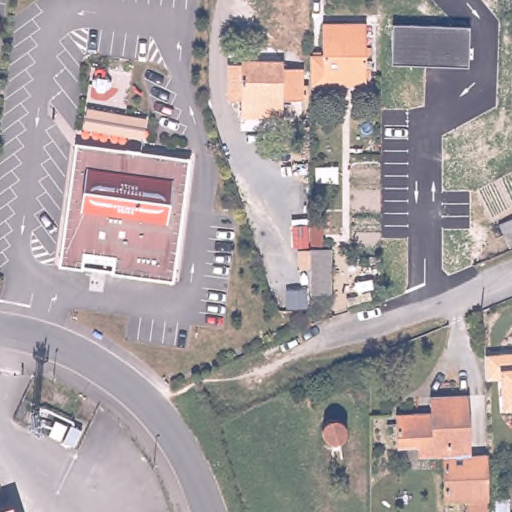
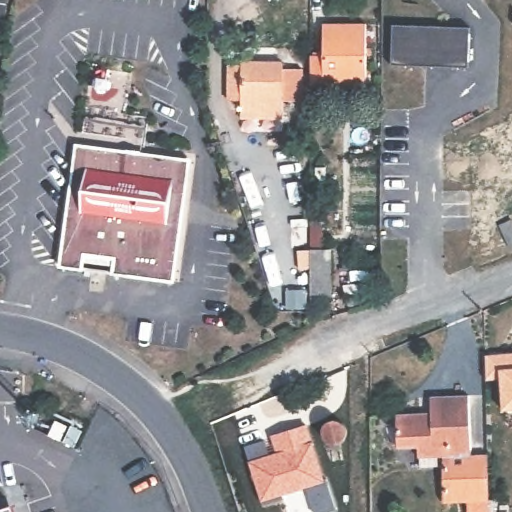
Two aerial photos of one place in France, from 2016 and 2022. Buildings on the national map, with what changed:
unchanged [(366,90),(312,89),(312,63),(312,59),(324,59),(323,27),(366,28),(366,74),(366,90)]
unchanged [(420,69),(396,68),(398,28),(475,31),(473,71),(420,69)]
unchanged [(229,103),(229,65),(283,63),(283,73),(301,73),(300,103),(282,103),(282,119),(240,119),(240,103),(229,103)]
unchanged [(188,156),(173,278),(61,264),(76,143),(188,156)]
unchanged [(311,309),(288,308),(285,288),(311,289),(310,270),(298,270),(297,248),(311,248),(310,216),(325,216),(325,248),(333,248),(331,297),(311,297),(311,309)]
unchanged [(501,224),(512,219),(512,247),(511,248),(501,224)]
unchanged [(473,225),(473,243),(459,243),(460,220),(466,220),(466,225),(473,225)]
unchanged [(500,378),(483,379),(483,353),(499,352),(512,351),(512,407),(502,407),(500,378)]
unchanged [(397,411),(421,411),(421,418),(432,418),(432,392),(468,392),(469,436),(469,449),(484,450),(483,495),(441,495),(440,451),(418,451),(417,444),(411,444),(398,444),(397,416),(397,411)]
unchanged [(322,431),(323,426),(327,422),(332,419),(337,419),(342,421),(345,423),(348,427),(349,432),(349,437),(346,442),(341,446),(338,447),(333,447),(327,444),(323,440),(322,436),(322,431)]
unchanged [(54,424),(65,430),(58,444),(47,439),(54,424)]
new [(335,509),(323,512),(313,512),(307,488),(283,495),(284,498),(263,504),(244,447),(265,440),(269,454),(275,452),(270,435),(309,425),(325,481),(328,481),(335,509)]
unchanged [(456,510),(482,511),(482,512),(456,512),(456,510)]

